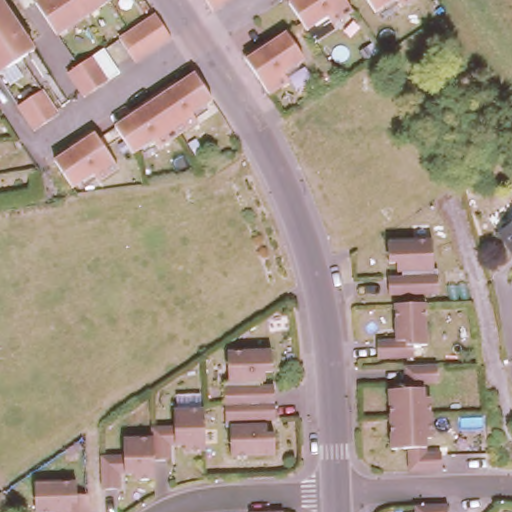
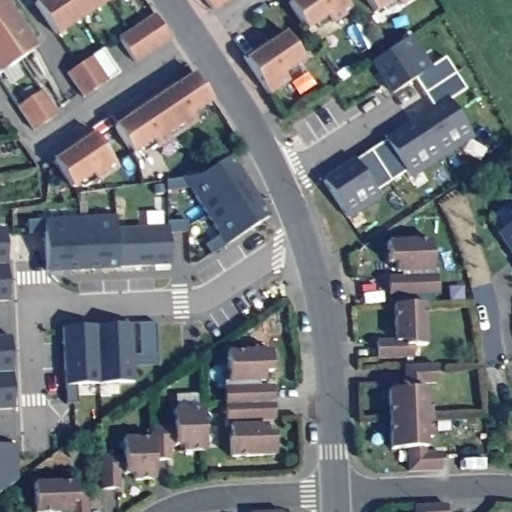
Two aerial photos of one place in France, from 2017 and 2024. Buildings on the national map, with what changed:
unchanged [(33,49),(0,72),(0,0),(33,49)]
unchanged [(108,0),(56,35),(34,1),(36,0),(108,0)]
unchanged [(200,0),(222,0),(207,10),(200,0)]
unchanged [(305,29),(287,2),(291,0),(344,0),(350,10),(330,23),(329,21),(315,29),(312,24),(305,29)]
unchanged [(374,12),(366,0),(408,0),(399,6),(397,3),(385,11),(382,6),(374,12)]
unchanged [(119,37),(142,22),(154,14),(170,38),(157,46),(135,61),(119,37)]
unchanged [(285,77),(287,80),(268,93),(242,55),(255,46),(266,39),(269,43),(285,32),(302,59),(295,64),(298,69),(285,77)]
new [(409,34),(430,66),(445,56),(467,88),(450,99),(473,135),(410,177),(406,171),(376,190),(380,197),(348,217),(324,180),(434,107),(415,78),(393,91),(372,60),(409,34)]
unchanged [(62,71),(98,48),(114,73),(77,96),(62,71)]
unchanged [(132,152),(115,126),(130,115),(127,111),(137,104),(165,86),(175,80),(177,83),(180,81),(192,73),(211,100),(204,105),(207,110),(200,114),(195,118),(197,121),(157,147),(155,144),(142,152),(140,147),(132,152)]
unchanged [(41,84),(57,108),(32,125),(17,100),(41,84)]
unchanged [(80,180),(71,186),(53,160),(70,149),(67,146),(77,139),(92,130),(117,168),(97,181),(94,178),(82,185),(80,180)]
new [(219,232),(195,195),(172,189),(167,180),(184,178),(198,176),(228,155),(267,216),(225,242),(210,252),(204,243),(219,232)]
unchanged [(508,258),(487,227),(512,210),(512,269),(505,259),(508,258)]
new [(118,264),(44,268),(42,230),(25,231),(24,218),(41,217),(116,214),(118,264)]
new [(185,218),(186,229),(168,230),(167,219),(185,218)]
new [(117,226),(167,224),(169,262),(118,264),(117,226)]
new [(2,225),(5,298),(0,299),(0,226),(2,225)]
unchanged [(424,232),(425,267),(432,265),(432,290),(381,291),(380,276),(395,278),(394,259),(385,258),(385,232),(424,232)]
unchanged [(420,300),(420,345),(407,346),(407,355),(375,354),(375,333),(390,332),(386,301),(420,300)]
new [(154,320),(156,363),(131,364),(129,322),(154,320)]
new [(63,403),(62,384),(60,325),(129,322),(131,364),(132,381),(74,383),(75,402),(63,403)]
new [(7,334),(10,407),(0,407),(0,335),(7,334)]
unchanged [(264,337),(265,365),(259,365),(259,381),(269,384),(270,421),(267,421),(270,450),(225,451),(220,385),(226,384),(222,339),(264,337)]
unchanged [(384,383),(402,383),(401,361),(434,360),(434,377),(415,378),(415,383),(420,383),(420,392),(426,392),(427,412),(407,413),(385,413),(384,383)]
unchanged [(171,421),(170,404),(200,402),(201,425),(202,444),(182,445),(181,439),(172,439),(172,434),(167,434),(167,454),(152,454),(150,454),(149,432),(149,422),(171,421)]
unchanged [(407,413),(427,412),(427,433),(421,433),(421,442),(416,443),(417,448),(436,447),(437,464),(404,465),(403,443),(385,443),(385,413),(407,413)]
unchanged [(121,450),(120,433),(149,432),(150,454),(152,454),(152,473),(132,474),(132,468),(122,468),(122,463),(117,464),(117,483),(100,484),(99,451),(121,450)]
new [(12,443),(14,479),(0,488),(0,444),(12,443)]
unchanged [(86,512),(70,512),(70,507),(34,509),(32,478),(74,476),(75,490),(85,489),(86,512)]
unchanged [(410,500),(442,500),(442,512),(410,512),(410,500)]
unchanged [(247,506),(285,506),(286,512),(247,512),(247,506)]

